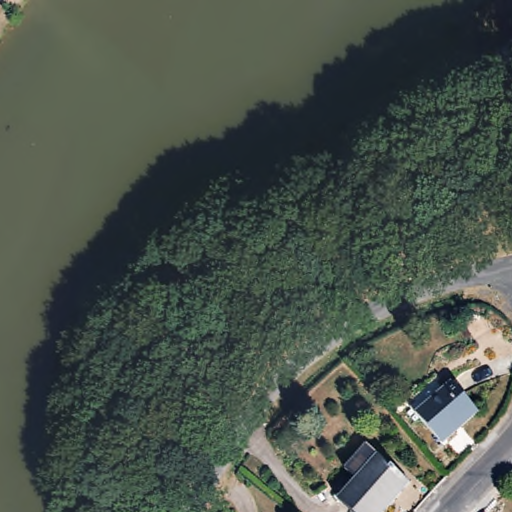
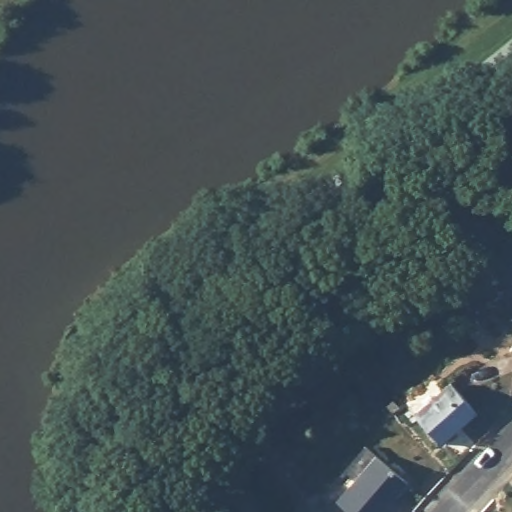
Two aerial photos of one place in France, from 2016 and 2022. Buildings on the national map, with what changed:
unchanged [(455,382),(480,411),(445,443),(419,414),(455,382)]
unchanged [(378,452),(410,480),(382,512),(356,512),(338,497),(378,452)]

